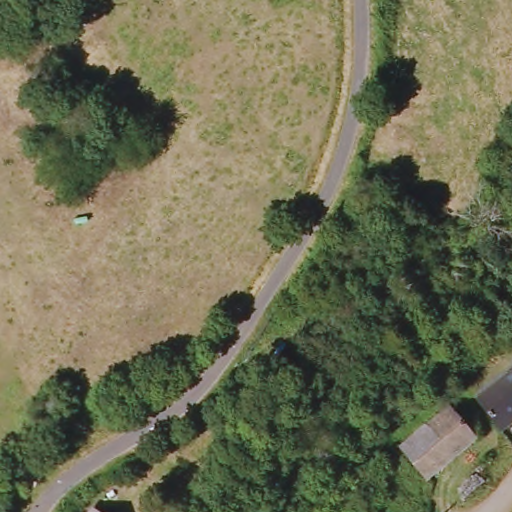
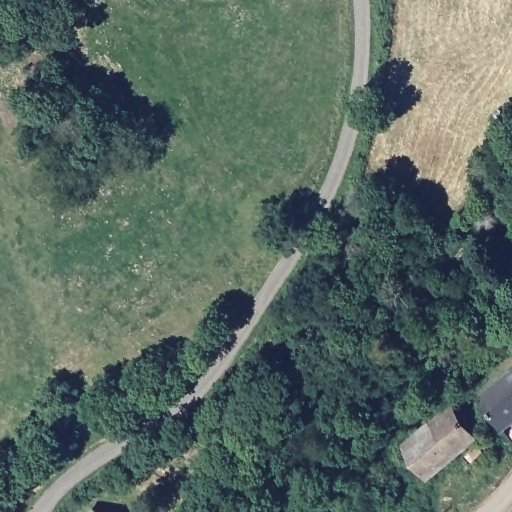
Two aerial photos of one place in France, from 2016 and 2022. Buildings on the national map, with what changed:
unchanged [(512,371),(512,421),(503,427),(478,395),(512,371)]
unchanged [(449,405),(478,439),(430,480),(402,447),(449,405)]
unchanged [(97,512),(96,512),(96,511),(97,512)]

